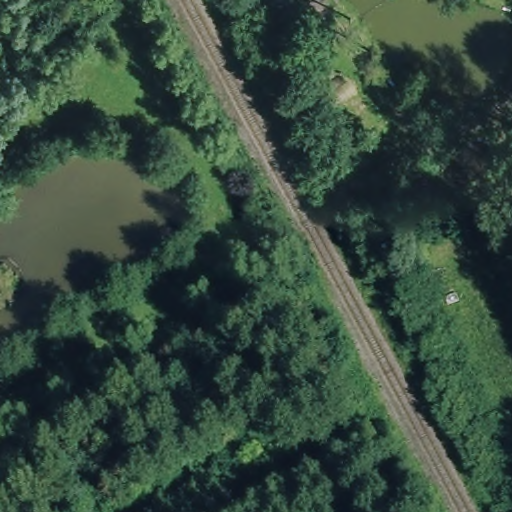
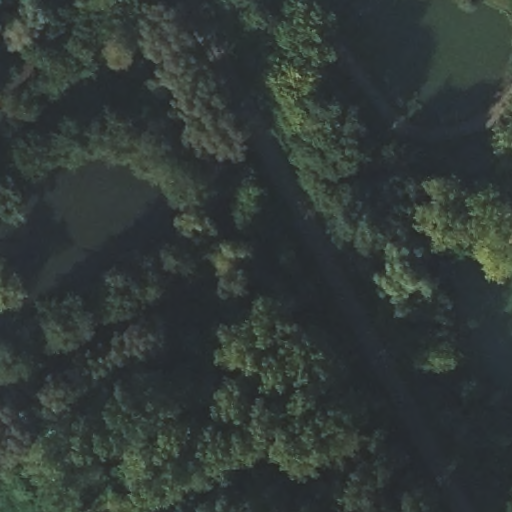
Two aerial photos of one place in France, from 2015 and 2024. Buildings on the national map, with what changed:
unchanged [(262,0),(296,0),(302,12),(275,26),(262,0)]
unchanged [(261,270),(245,244),(258,238),(273,264),(261,270)]

